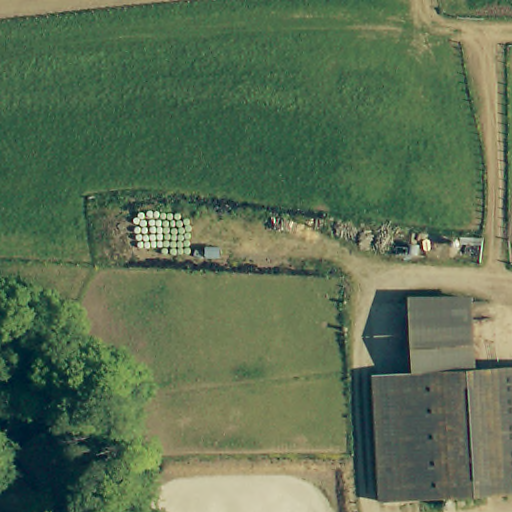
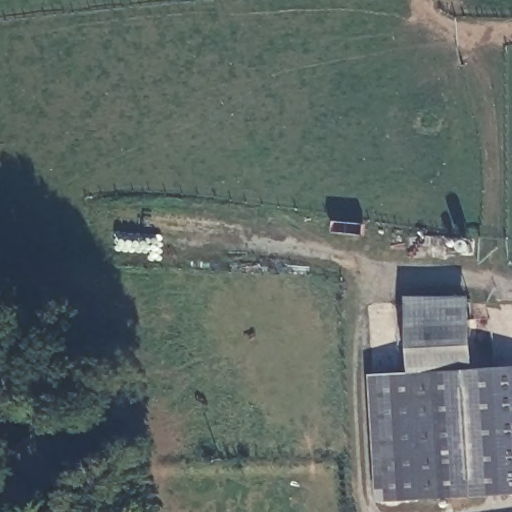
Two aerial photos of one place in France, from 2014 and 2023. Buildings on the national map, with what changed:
unchanged [(412,373),(406,298),(469,296),(475,368),(412,373)]
unchanged [(475,368),(512,365),(512,489),(381,499),(373,375),(412,373),(475,368)]
unchanged [(53,421),(62,434),(81,462),(63,475),(40,490),(12,449),(53,421)]

